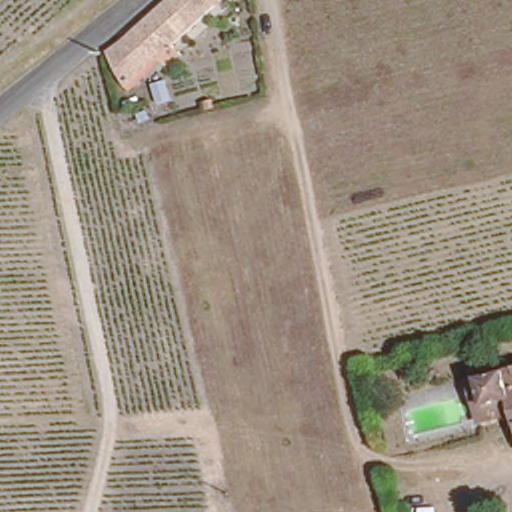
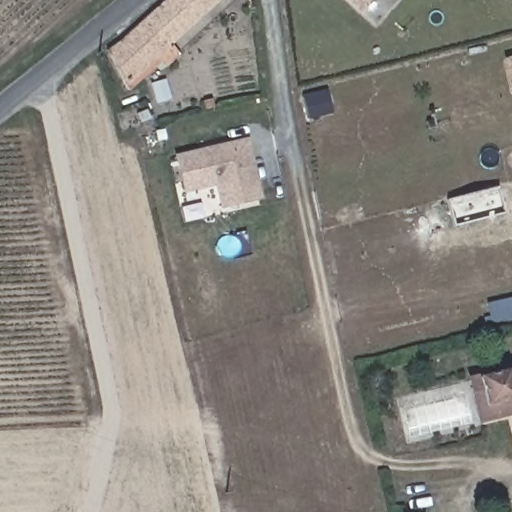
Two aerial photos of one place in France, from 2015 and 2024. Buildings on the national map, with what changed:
unchanged [(122,81),(102,50),(158,0),(214,0),(160,49),(122,81)]
new [(347,0),(371,0),(360,11),(347,0)]
new [(503,59),(512,56),(512,93),(511,93),(503,59)]
new [(258,193),(223,202),(217,183),(184,191),(176,158),(246,141),(258,193)]
unchanged [(479,421),(467,379),(477,376),(512,365),(512,412),(479,421)]

